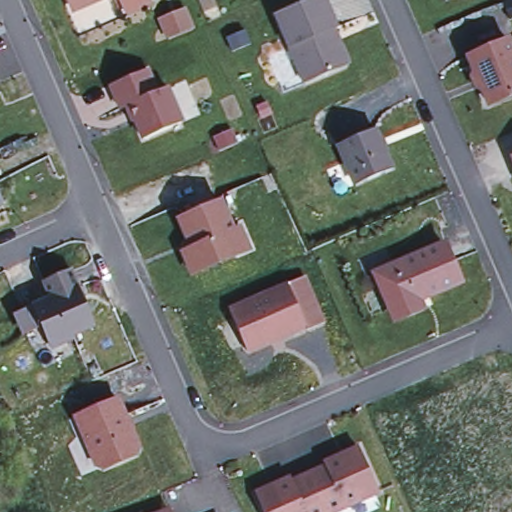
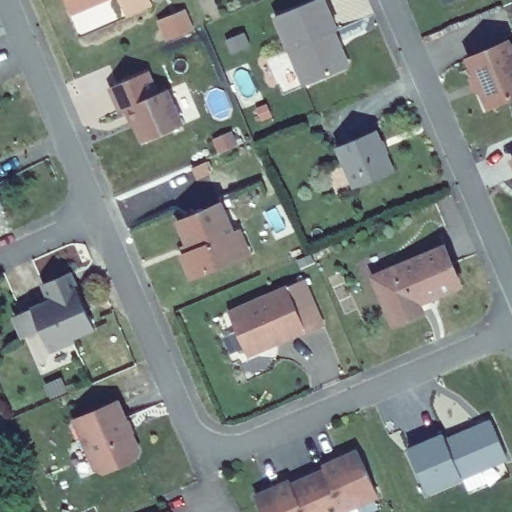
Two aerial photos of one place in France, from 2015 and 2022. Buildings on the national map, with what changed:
unchanged [(71,9),(68,0),(95,0),(72,10),(71,9)]
unchanged [(324,0),(337,30),(330,32),(333,45),(342,49),(347,61),(344,69),(305,85),(275,18),(316,0),(324,0)]
unchanged [(444,0),(452,0),(445,3),(444,0)]
unchanged [(512,52),(512,97),(490,107),(468,59),(507,40),(512,52)]
unchanged [(148,72),(157,95),(169,91),(182,125),(144,142),(130,108),(122,112),(111,89),(148,72)]
unchanged [(375,132),(392,171),(355,187),(338,148),(375,132)]
unchanged [(4,206),(0,208),(0,198),(4,206)]
unchanged [(223,205),(235,237),(229,239),(236,258),(187,280),(178,256),(189,252),(175,221),(223,205)]
unchanged [(445,249),(460,286),(418,302),(421,312),(399,321),(391,318),(375,277),(445,249)]
unchanged [(50,302),(44,285),(72,274),(80,290),(78,292),(96,330),(73,338),(74,341),(52,351),(42,330),(26,336),(17,316),(50,302)]
unchanged [(305,279),(325,325),(307,333),(306,330),(278,342),(275,341),(247,354),(230,312),(305,279)]
unchanged [(121,402),(143,454),(98,476),(75,420),(121,402)]
new [(508,457),(460,475),(462,479),(427,495),(407,446),(443,432),(445,436),(490,418),(508,457)]
unchanged [(308,478),(326,470),(325,467),(359,451),(378,496),(342,512),(324,512),(308,478)]
unchanged [(256,497),(291,482),(292,485),(308,478),(324,512),(263,512),(256,497)]

